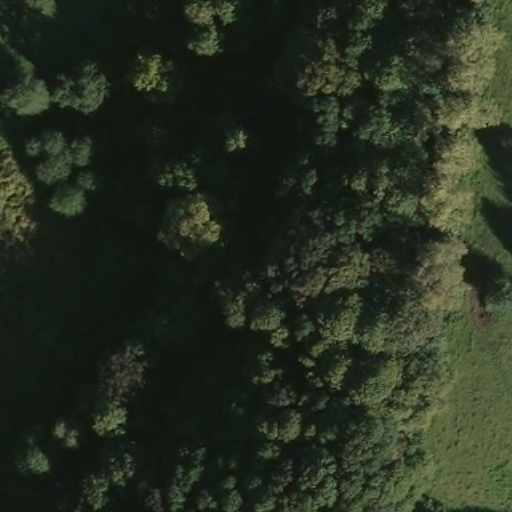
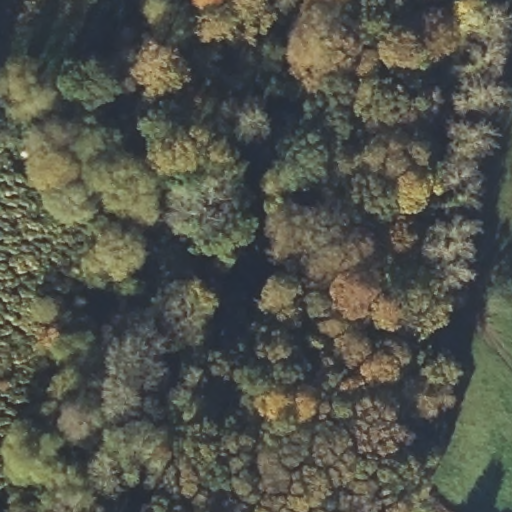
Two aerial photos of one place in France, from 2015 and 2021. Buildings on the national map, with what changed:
[]

